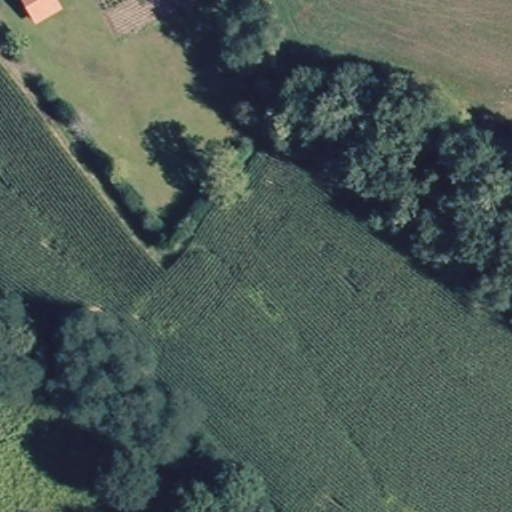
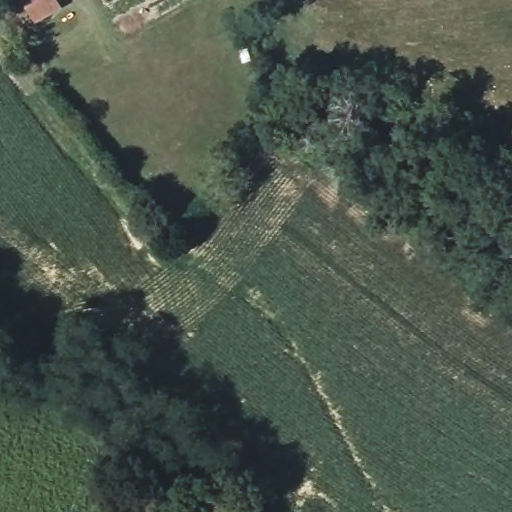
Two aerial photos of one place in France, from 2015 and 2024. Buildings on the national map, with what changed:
unchanged [(62,9),(34,24),(20,0),(57,0),(62,9)]

